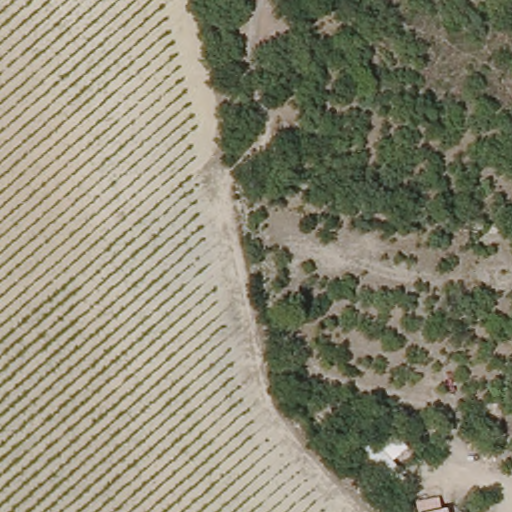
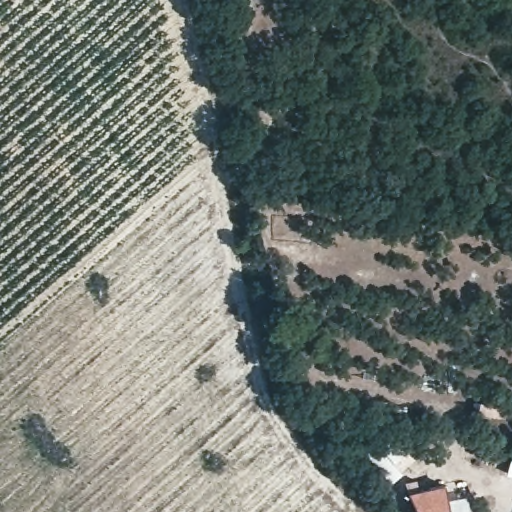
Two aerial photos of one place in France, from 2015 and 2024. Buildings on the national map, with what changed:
new [(416,512),(408,489),(444,482),(449,510),(449,512),(416,512)]
demolished [(441,512),(432,512),(441,510),(441,512)]

